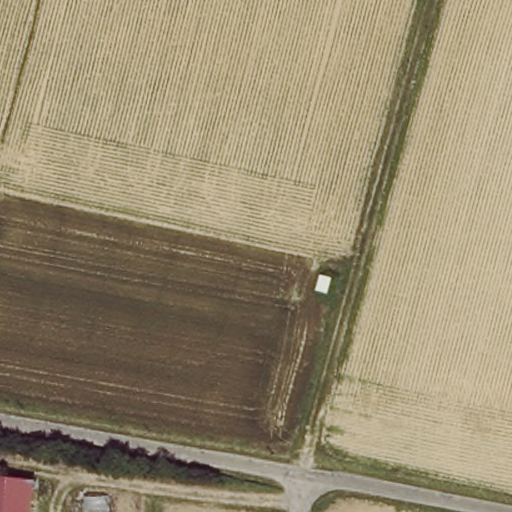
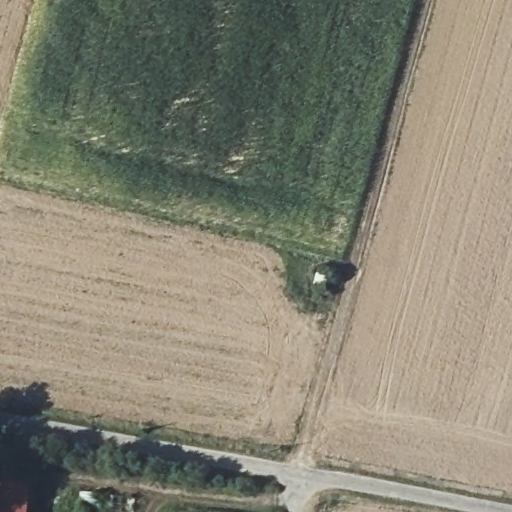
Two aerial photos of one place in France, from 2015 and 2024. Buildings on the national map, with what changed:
unchanged [(0,512),(0,473),(31,475),(28,512),(0,512)]
unchanged [(136,512),(71,512),(72,494),(138,502),(136,512)]

